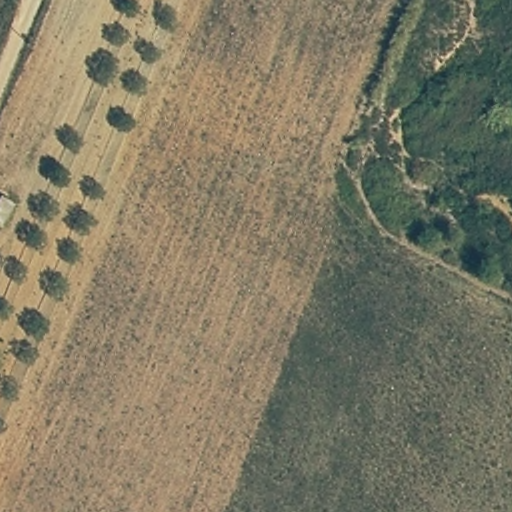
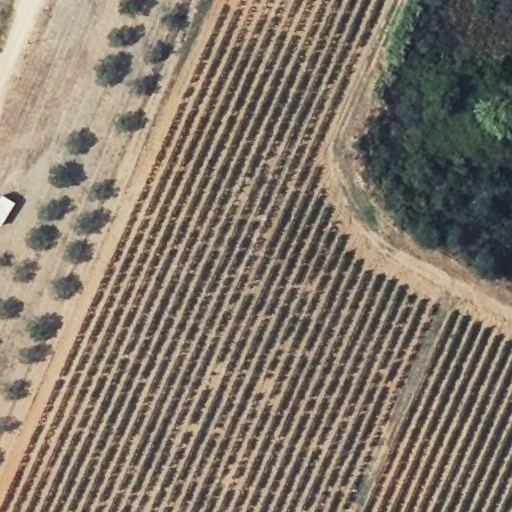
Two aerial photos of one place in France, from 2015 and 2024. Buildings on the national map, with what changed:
unchanged [(14,206),(0,226),(0,196),(14,206)]

